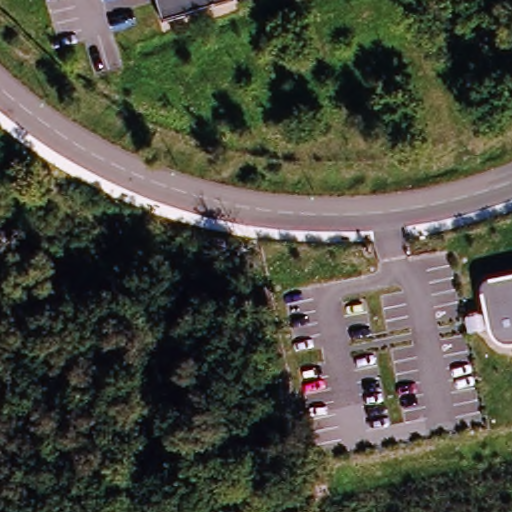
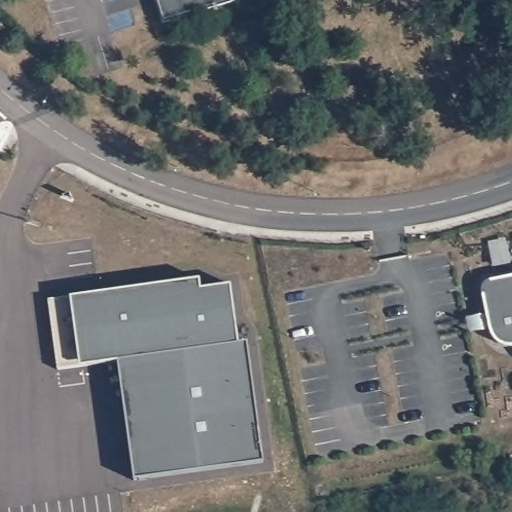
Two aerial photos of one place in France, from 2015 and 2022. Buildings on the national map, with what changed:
unchanged [(164,21),(157,0),(236,0),(164,21)]
unchanged [(500,343),(495,340),(492,332),(485,295),(485,285),(486,284),(489,281),(512,276),(512,346),(508,347),(500,343)]
new [(136,480),(120,360),(81,365),(60,370),(51,300),(73,297),(200,280),(201,290),(231,285),(239,344),(248,342),(264,462),(136,480)]

